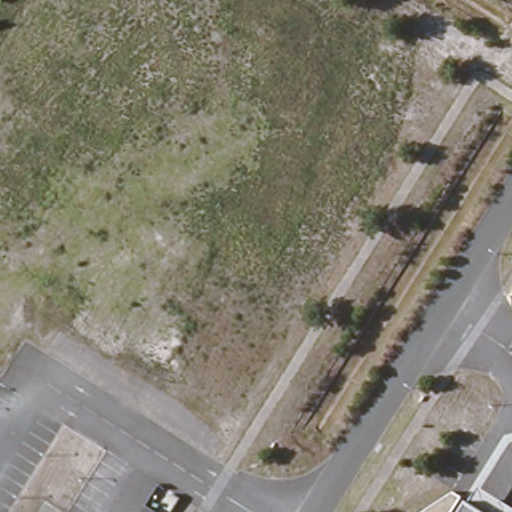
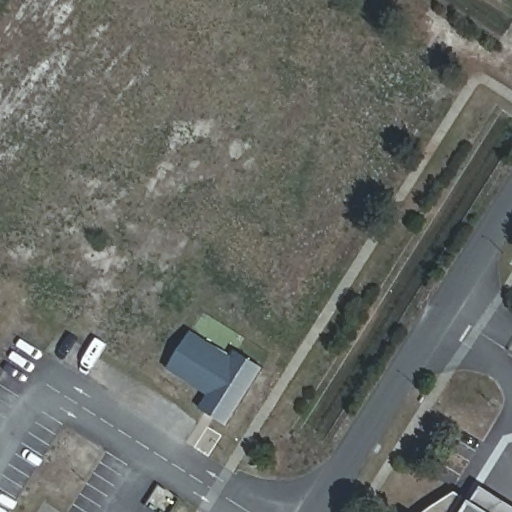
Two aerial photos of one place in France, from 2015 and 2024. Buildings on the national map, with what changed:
new [(204,402),(209,394),(167,368),(191,331),(232,357),(236,351),(263,367),(230,419),(227,425),(200,408),(204,402)]
unchanged [(474,504),(486,487),(512,503),(512,512),(469,512),(474,504)]
unchanged [(442,504),(459,493),(468,498),(458,512),(431,512),(442,504)]

